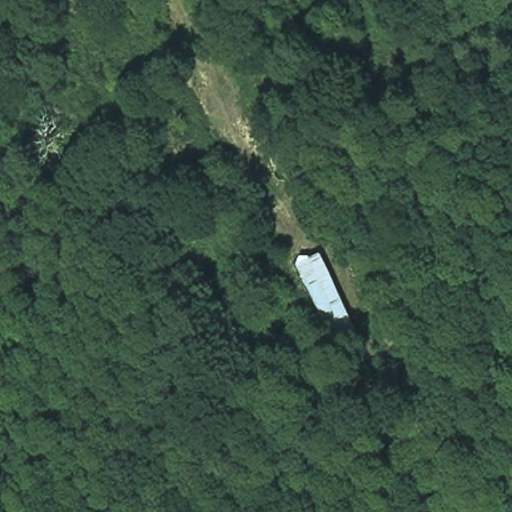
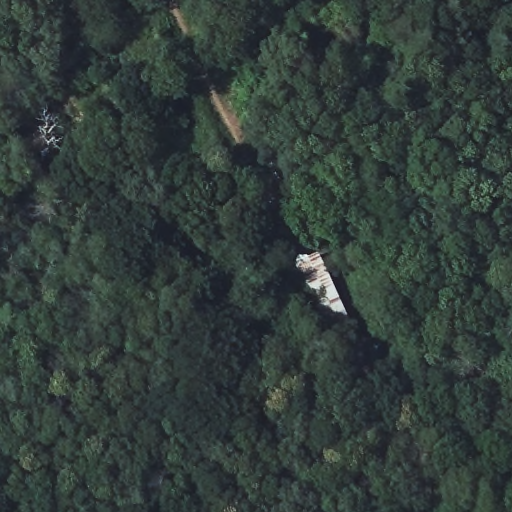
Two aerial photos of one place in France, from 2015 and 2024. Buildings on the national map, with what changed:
unchanged [(290,259),(320,247),(361,343),(336,354),(290,259)]

